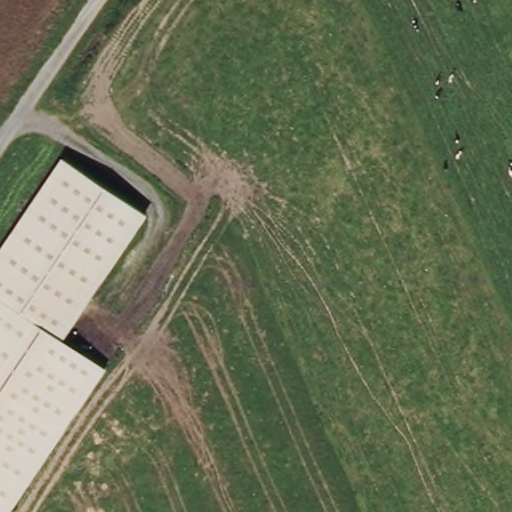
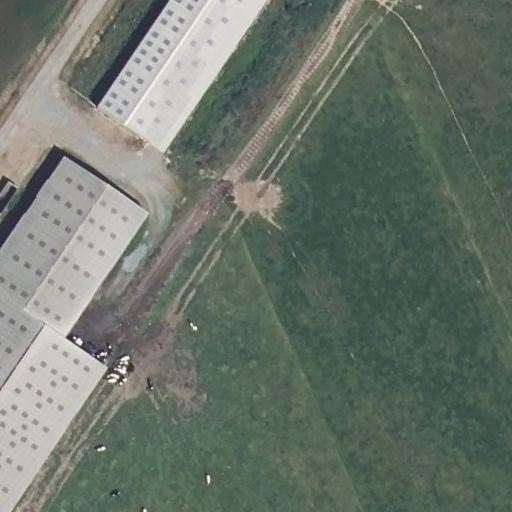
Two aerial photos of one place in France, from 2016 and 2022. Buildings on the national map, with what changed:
new [(162,152),(94,107),(167,0),(265,0),(162,152)]
unchanged [(11,512),(0,512),(0,257),(66,157),(136,204),(57,332),(107,363),(11,512)]

